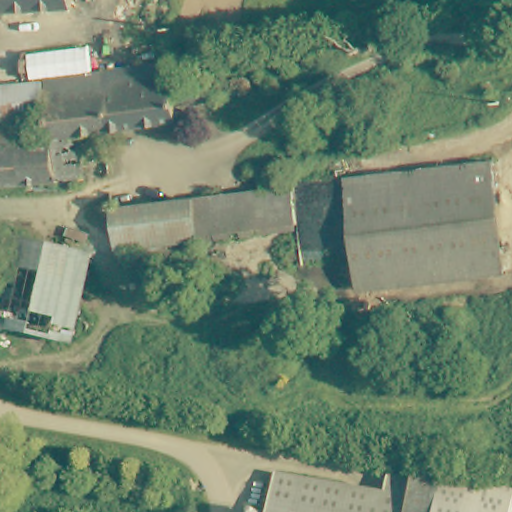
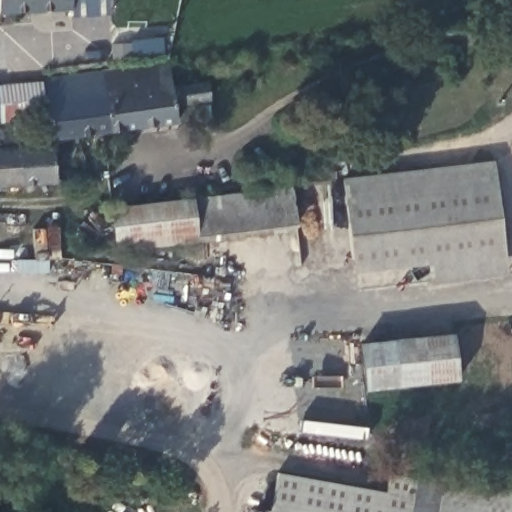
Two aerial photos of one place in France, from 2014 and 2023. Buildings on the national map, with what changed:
unchanged [(66,12),(0,17),(0,0),(65,0),(66,12)]
unchanged [(111,15),(72,19),(72,10),(66,12),(65,0),(110,0),(111,15)]
unchanged [(169,67),(171,90),(208,85),(210,103),(174,106),(177,123),(77,136),(82,176),(56,182),(50,127),(44,83),(169,67)]
unchanged [(44,121),(0,124),(0,90),(42,87),(44,121)]
unchanged [(56,182),(0,188),(0,132),(50,127),(56,182)]
unchanged [(351,220),(346,177),(497,161),(507,270),(358,289),(351,220)]
unchanged [(112,211),(291,191),(296,228),(296,229),(232,236),(117,251),(112,211)]
new [(458,381),(365,391),(359,344),(452,334),(458,381)]
unchanged [(2,459),(2,461),(3,463),(4,464),(3,466),(2,468),(2,470),(1,471),(0,472),(0,458),(1,458),(2,459)]
unchanged [(270,512),(276,476),(300,480),(295,512),(270,512)]
unchanged [(387,478),(414,483),(416,476),(512,494),(512,512),(295,512),(300,480),(385,496),(387,478)]

